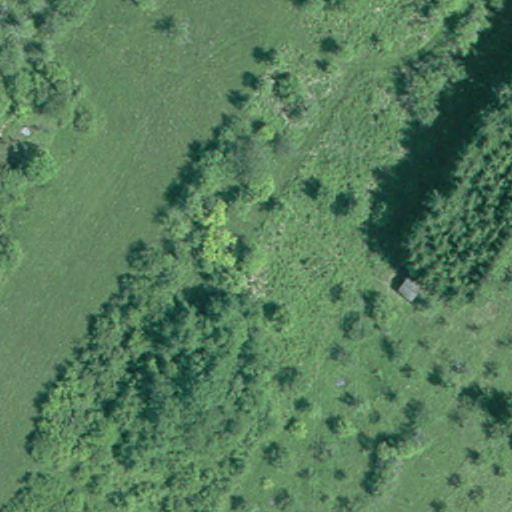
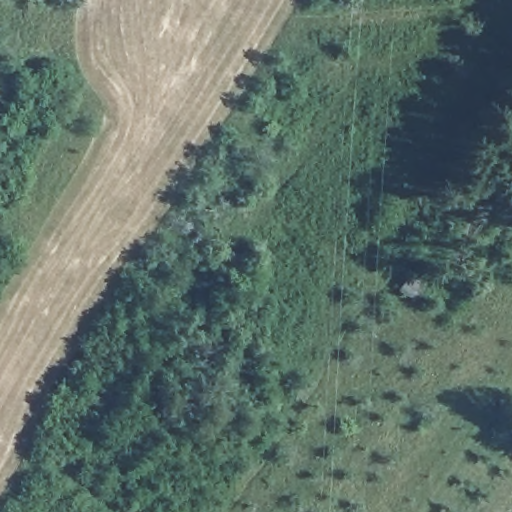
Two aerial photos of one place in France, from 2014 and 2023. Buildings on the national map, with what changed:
unchanged [(401,290),(409,276),(422,283),(414,296),(401,290)]

